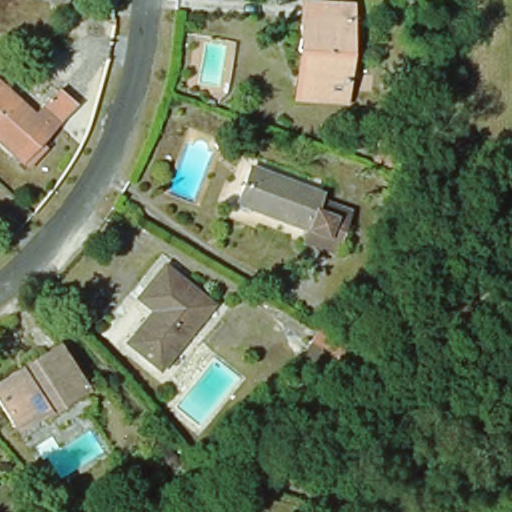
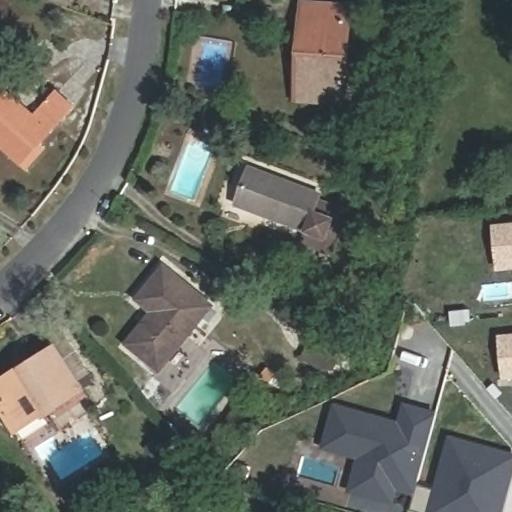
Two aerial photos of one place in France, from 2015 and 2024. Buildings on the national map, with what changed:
unchanged [(294,105),(297,57),(299,29),(300,7),(349,11),(343,95),(342,107),(294,105)]
unchanged [(10,157),(0,148),(0,90),(32,120),(55,95),(70,109),(39,142),(18,165),(10,157)]
unchanged [(344,222),(332,252),(299,238),(303,227),(235,201),(249,165),(317,192),(315,197),(348,210),(344,222)]
new [(495,226),(512,224),(512,264),(499,266),(495,226)]
unchanged [(132,347),(157,316),(140,301),(149,291),(167,269),(214,307),(191,337),(163,372),(132,347)]
new [(499,338),(512,337),(512,377),(503,377),(499,338)]
unchanged [(41,420),(39,417),(14,433),(0,411),(0,383),(17,372),(54,348),(59,356),(84,393),(41,420)]
new [(416,490),(396,485),(392,500),(351,488),(355,474),(360,455),(325,445),(329,431),(336,405),(401,422),(399,431),(406,404),(437,412),(430,438),(420,472),(418,482),(437,487),(451,436),(512,453),(512,472),(509,480),(501,512),(428,512),(411,507),(416,490)]
unchanged [(240,488),(245,502),(225,510),(220,496),(240,488)]

